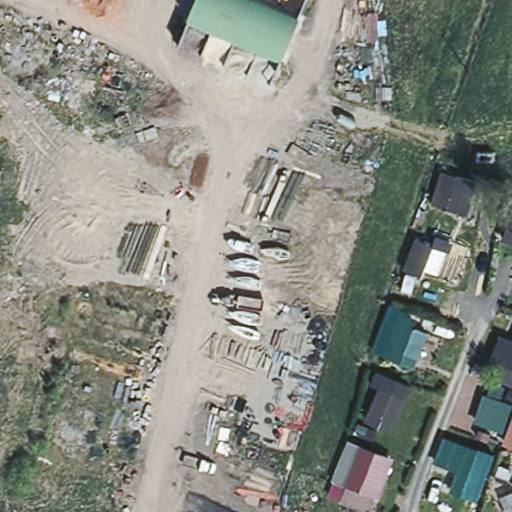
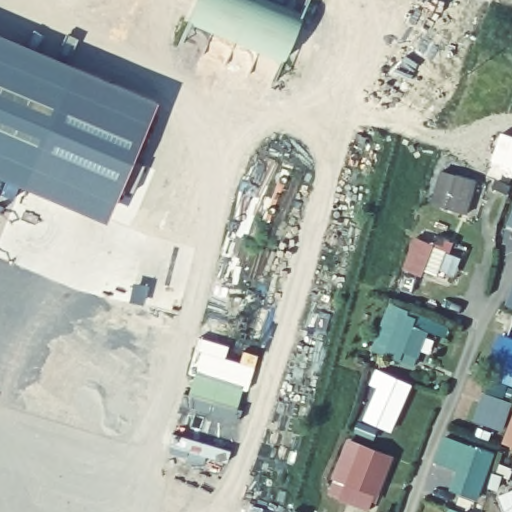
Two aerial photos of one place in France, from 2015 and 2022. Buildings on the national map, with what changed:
unchanged [(281,63),(188,24),(198,0),(271,0),(301,11),(281,63)]
new [(153,119),(70,83),(30,175),(113,211),(108,224),(0,178),(0,37),(159,105),(153,119)]
new [(70,83),(153,119),(113,211),(30,175),(70,83)]
unchanged [(474,182),(462,216),(431,207),(441,172),(474,182)]
new [(509,226),(512,216),(512,227),(509,226)]
demolished [(508,243),(512,235),(512,246),(508,243)]
new [(434,319),(415,368),(372,351),(389,302),(434,319)]
unchanged [(512,341),(512,388),(484,378),(498,336),(512,341)]
unchanged [(371,386),(377,372),(411,386),(391,434),(363,423),(377,389),(371,386)]
unchanged [(498,442),(512,408),(512,447),(498,442)]
unchanged [(329,492),(354,437),(394,454),(370,512),(367,512),(329,492)]
new [(496,454),(478,501),(450,491),(457,472),(434,464),(444,437),(496,454)]
unchanged [(511,455),(512,452),(512,455),(511,455)]
new [(512,491),(512,512),(506,512),(500,496),(512,491)]

